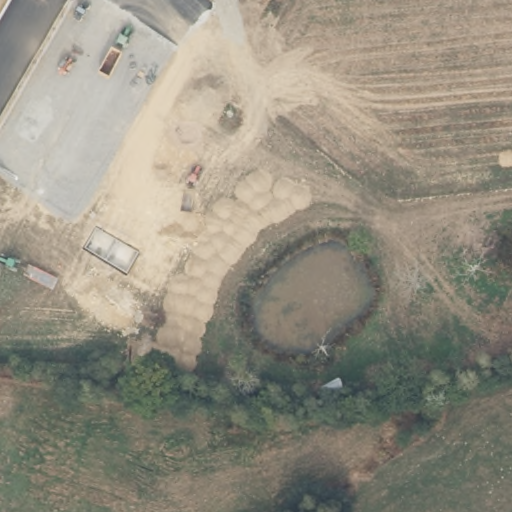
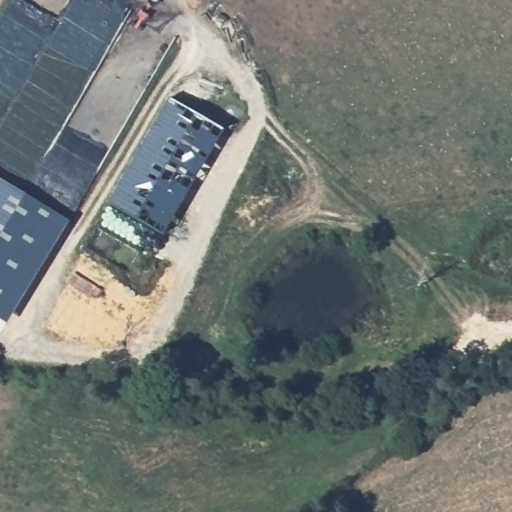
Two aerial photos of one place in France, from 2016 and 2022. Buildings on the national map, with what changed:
new [(167,97),(223,129),(163,235),(108,202),(167,97)]
new [(69,222),(5,325),(0,321),(0,180),(69,222)]

